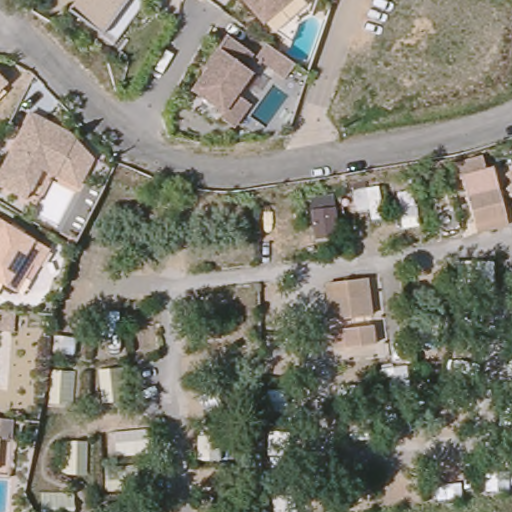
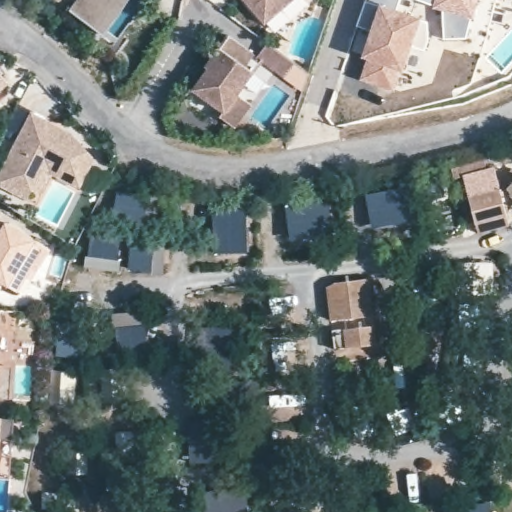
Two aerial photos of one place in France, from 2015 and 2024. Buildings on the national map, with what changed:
unchanged [(65,7),(70,0),(120,0),(97,31),(89,26),(65,7)]
unchanged [(249,0),(287,0),(267,17),(249,0)]
new [(365,0),(398,0),(394,11),(368,2),(365,1),(365,0)]
new [(471,17),(466,37),(444,39),(443,11),(432,8),(432,5),(418,0),(477,0),(473,18),(471,17)]
new [(368,2),(430,23),(431,39),(427,51),(412,45),(403,69),(401,68),(394,89),(364,79),(372,57),(366,55),(374,31),(360,26),(368,2)]
unchanged [(248,52),(239,65),(247,71),(231,93),(244,103),(227,126),(213,115),(216,110),(187,87),(202,67),(199,65),(223,34),(248,52)]
unchanged [(289,64),(279,77),(251,56),(261,42),(289,64)]
unchanged [(56,174),(41,167),(27,197),(0,184),(0,170),(29,112),(44,120),(59,126),(71,132),(91,157),(82,176),(78,184),(56,174)]
unchanged [(478,231),(475,222),(466,186),(498,179),(507,214),(509,224),(478,231)]
unchanged [(512,182),(512,192),(507,187),(512,182)]
unchanged [(9,284),(0,279),(0,217),(51,247),(41,265),(36,261),(18,290),(9,284)]
unchanged [(371,277),(373,293),(375,313),(333,317),(331,298),(329,282),(338,281),(364,277),(371,277)]
unchanged [(15,308),(13,329),(0,328),(0,307),(15,308)]
unchanged [(376,322),(378,341),(337,346),(335,327),(376,322)]
unchanged [(11,417),(9,437),(0,436),(0,416),(11,417)]

